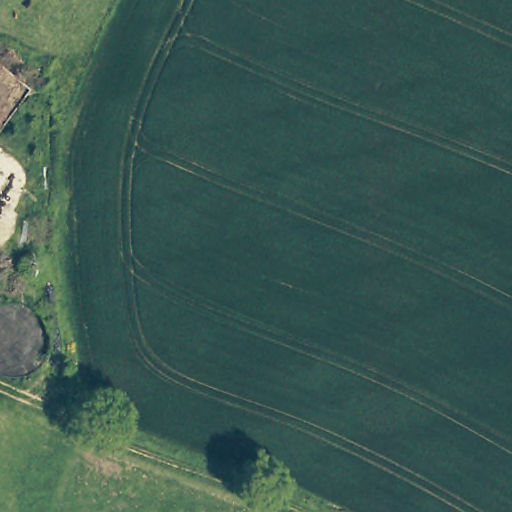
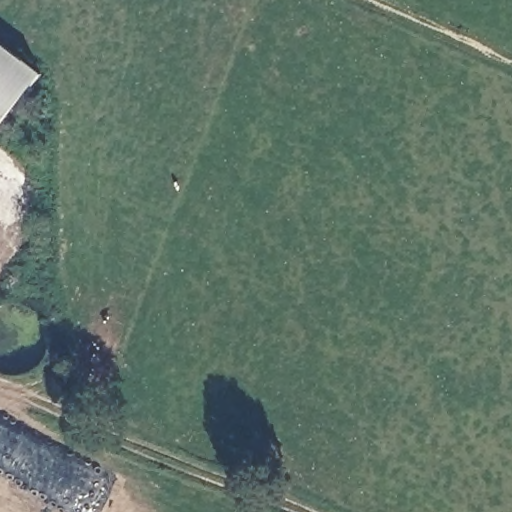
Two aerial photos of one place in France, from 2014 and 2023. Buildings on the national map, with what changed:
new [(0,131),(0,38),(45,72),(0,131)]

